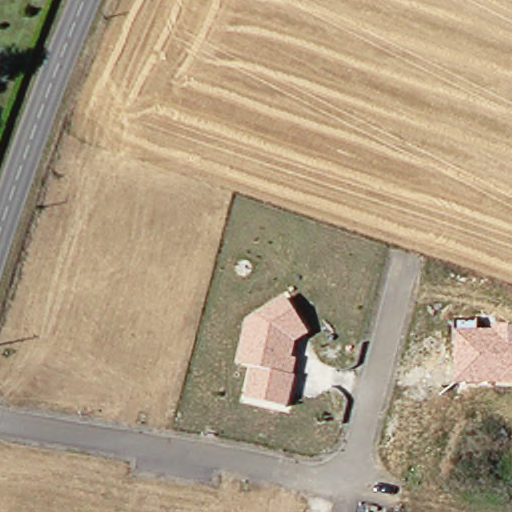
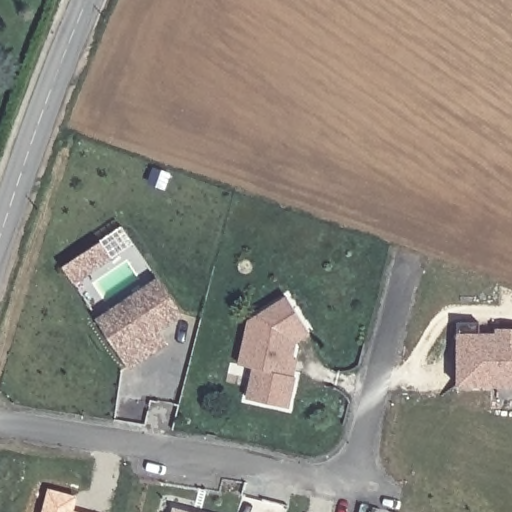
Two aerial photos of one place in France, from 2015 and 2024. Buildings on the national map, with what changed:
new [(74,285),(62,266),(102,241),(112,258),(74,285)]
new [(119,353),(96,317),(159,276),(184,315),(158,331),(167,343),(128,368),(119,353)]
unchanged [(290,371),(292,371),(286,402),(246,395),(252,363),(237,361),(246,316),(250,314),(284,292),(306,327),(292,336),(288,353),(293,355),(290,371)]
unchanged [(459,322),(481,322),(481,333),(502,333),(506,337),(512,337),(512,380),(498,380),(493,385),(459,385),(459,322)]
new [(48,488),(77,496),(74,510),(82,512),(42,512),(48,488)]
new [(175,510),(183,512),(174,512),(175,510)]

